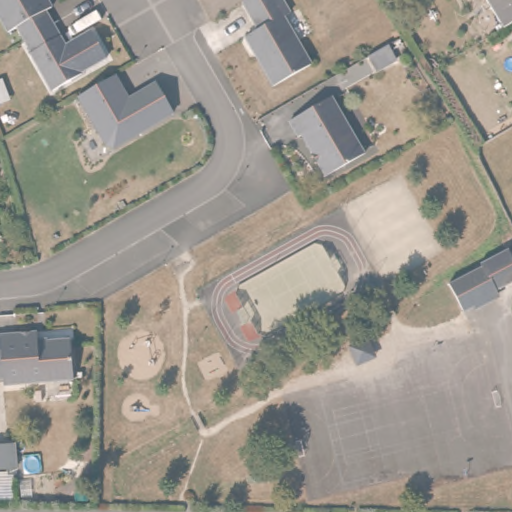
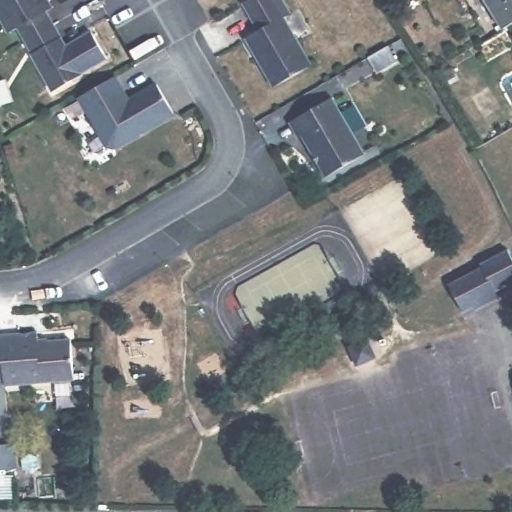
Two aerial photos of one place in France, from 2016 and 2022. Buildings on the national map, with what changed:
unchanged [(49,4),(43,7),(64,42),(90,27),(106,54),(81,69),(81,70),(51,87),(29,50),(30,49),(14,24),(5,29),(0,20),(0,0),(47,0),(49,4)]
unchanged [(243,39),(256,31),(239,4),(247,0),(279,0),(287,15),(281,19),(309,65),(271,86),(243,39)]
unchanged [(512,31),(510,32),(492,0),(512,0),(512,31)]
unchanged [(363,64),(372,58),(384,52),(392,65),(372,77),(363,64)]
unchanged [(172,113),(112,147),(104,145),(75,98),(111,77),(126,101),(155,85),(172,113)]
unchanged [(326,177),(300,135),(296,138),(288,124),(307,112),(328,100),(362,155),(326,177)]
unchanged [(445,284),(457,277),(478,267),(478,266),(477,265),(501,253),(504,251),(512,266),(512,283),(492,292),(494,295),(459,312),(445,285),(445,284)]
unchanged [(34,329),(34,338),(67,335),(71,376),(1,383),(0,370),(0,332),(34,329)]
unchanged [(12,441),(15,466),(0,468),(0,443),(12,441)]

